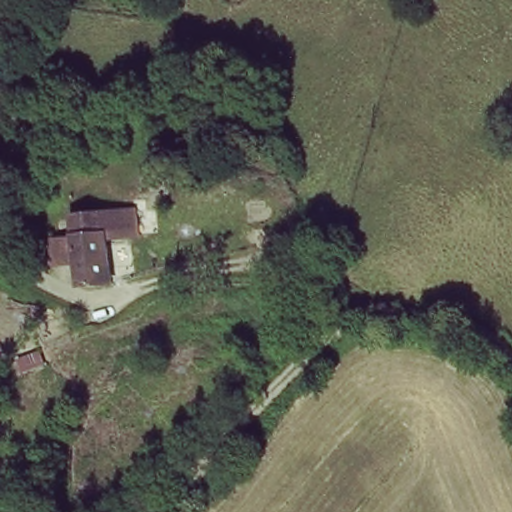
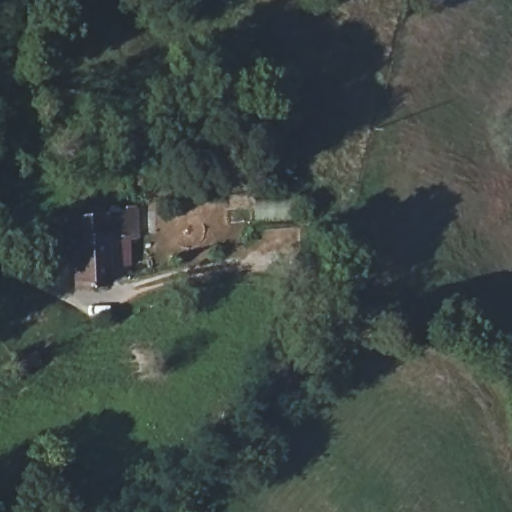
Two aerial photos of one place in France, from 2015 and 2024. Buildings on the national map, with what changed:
unchanged [(96,277),(87,279),(80,279),(73,215),(102,213),(137,211),(138,236),(103,239),(105,275),(96,277)]

